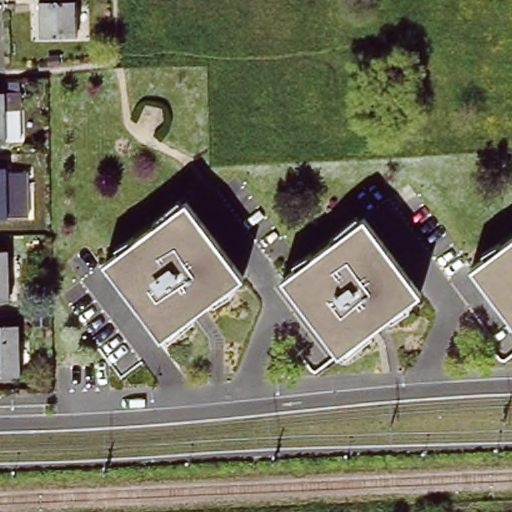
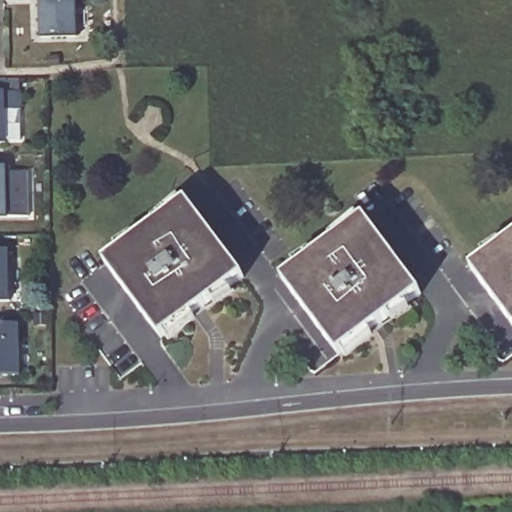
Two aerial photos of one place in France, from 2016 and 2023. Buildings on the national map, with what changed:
unchanged [(42,38),(41,0),(77,0),(78,37),(42,38)]
unchanged [(3,106),(3,138),(0,138),(0,89),(17,89),(17,105),(3,106)]
unchanged [(5,214),(0,214),(0,164),(5,164),(5,214)]
unchanged [(187,199),(245,273),(165,335),(108,263),(187,199)]
unchanged [(340,352),(329,339),(281,277),(362,215),(420,291),(340,352)]
unchanged [(470,267),(502,243),(512,235),(512,323),(470,267)]
unchanged [(0,298),(0,248),(7,248),(8,298),(0,298)]
unchanged [(19,376),(0,376),(0,327),(18,327),(19,376)]

